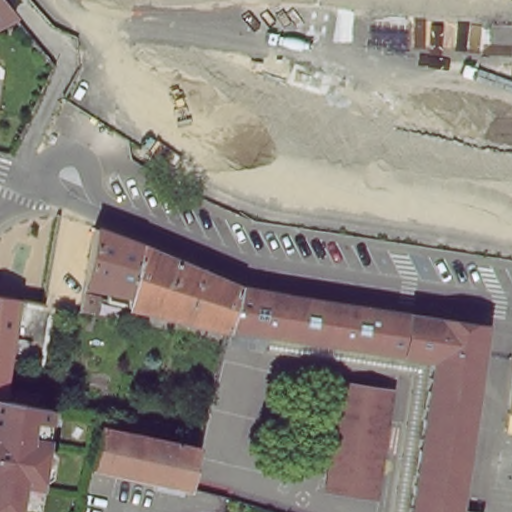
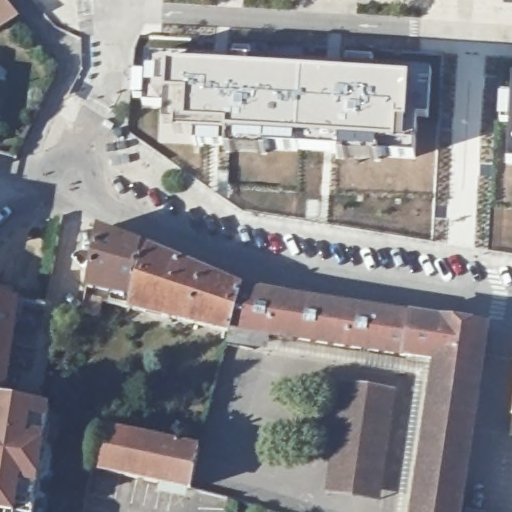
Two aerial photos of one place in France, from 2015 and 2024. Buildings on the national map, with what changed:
unchanged [(8,18),(0,23),(0,3),(11,16),(8,18)]
new [(133,74),(144,74),(146,53),(203,59),(203,64),(233,67),(413,80),(413,100),(406,147),(339,144),(268,141),(223,142),(223,150),(195,149),(196,137),(170,136),(171,129),(161,129),(163,111),(141,109),(142,104),(133,101),(133,74)]
new [(339,144),(406,147),(413,100),(427,101),(425,121),(419,121),(415,159),(339,155),(339,144)]
new [(223,142),(268,141),(339,144),(339,155),(223,150),(223,142)]
unchanged [(82,305),(68,303),(58,301),(60,289),(70,292),(73,275),(87,279),(97,224),(136,239),(141,241),(131,301),(110,296),(112,286),(95,282),(95,285),(93,292),(103,294),(100,308),(82,305)]
unchanged [(141,241),(243,285),(233,323),(232,325),(131,301),(141,241)]
unchanged [(243,285),(276,290),(280,290),(485,321),(458,512),(411,512),(435,354),(233,323),(243,285)]
unchanged [(0,298),(23,301),(8,398),(0,397),(0,298)]
unchanged [(379,501),(325,493),(343,381),(398,390),(379,501)]
unchanged [(505,435),(512,388),(512,437),(505,435)]
unchanged [(47,396),(46,402),(45,405),(55,407),(53,426),(50,438),(43,486),(41,498),(39,512),(0,512),(0,397),(8,398),(20,400),(22,391),(47,396)]
unchanged [(95,459),(101,426),(201,446),(198,460),(191,492),(92,470),(95,459)]

